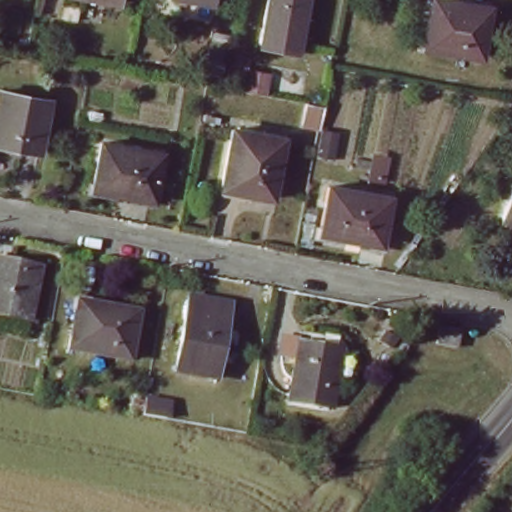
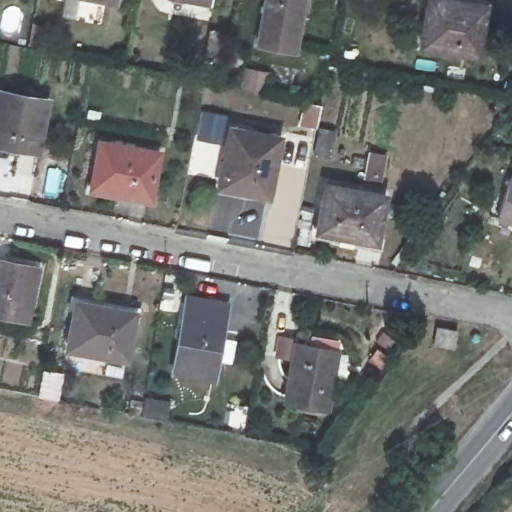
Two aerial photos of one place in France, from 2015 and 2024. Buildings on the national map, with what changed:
unchanged [(98,0),(119,0),(118,4),(98,0)]
unchanged [(255,42),(261,0),(300,0),(292,48),(255,42)]
unchanged [(419,45),(426,0),(429,0),(480,9),(473,54),(419,45)]
unchanged [(37,155),(0,147),(0,92),(48,101),(37,155)]
unchanged [(270,202),(247,197),(247,192),(219,187),(229,131),(280,142),(270,202)]
unchanged [(151,202),(92,191),(101,143),(161,156),(151,202)]
unchanged [(510,179),(512,180),(512,226),(497,221),(510,179)]
unchanged [(378,242),(318,230),(328,182),(388,196),(378,242)]
unchanged [(43,267),(33,322),(0,315),(0,259),(43,267)]
unchanged [(215,381),(173,372),(187,297),(230,307),(215,381)]
unchanged [(126,360),(66,348),(75,302),(134,313),(126,360)]
unchanged [(455,352),(433,348),(437,329),(459,333),(455,352)]
unchanged [(328,410),(284,401),(295,342),(338,350),(328,410)]

